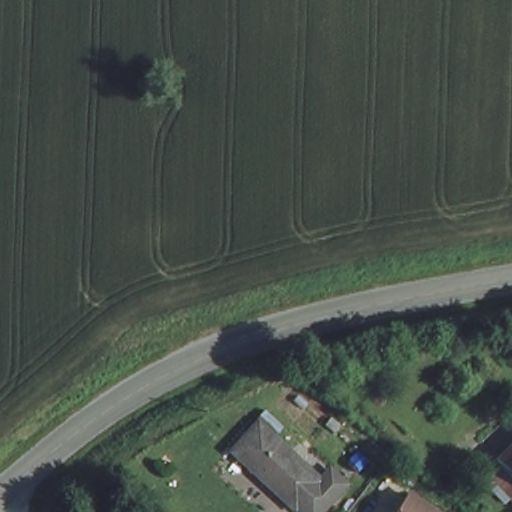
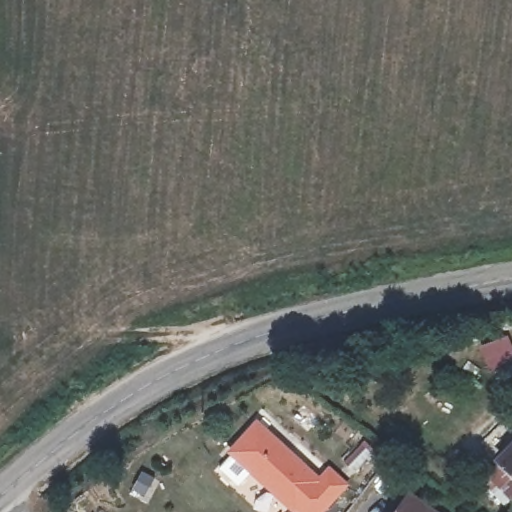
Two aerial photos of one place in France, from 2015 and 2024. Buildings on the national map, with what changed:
unchanged [(319,476),(328,465),(345,478),(317,512),(307,512),(297,504),(295,506),(232,449),(257,421),(319,476)]
unchanged [(493,466),(512,441),(512,484),(505,478),(493,466)]
unchanged [(405,491),(438,512),(391,512),(405,491)]

